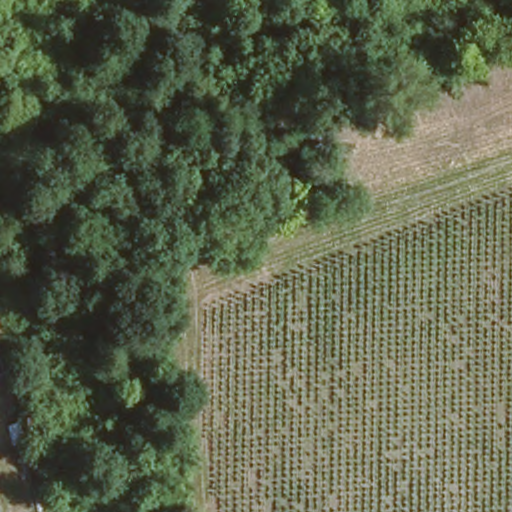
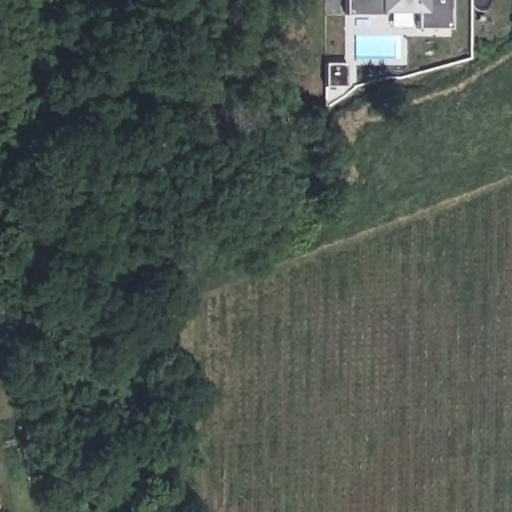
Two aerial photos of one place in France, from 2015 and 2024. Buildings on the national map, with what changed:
new [(418,29),(417,13),(384,13),(384,14),(344,14),(344,0),(450,0),(450,28),(418,29)]

